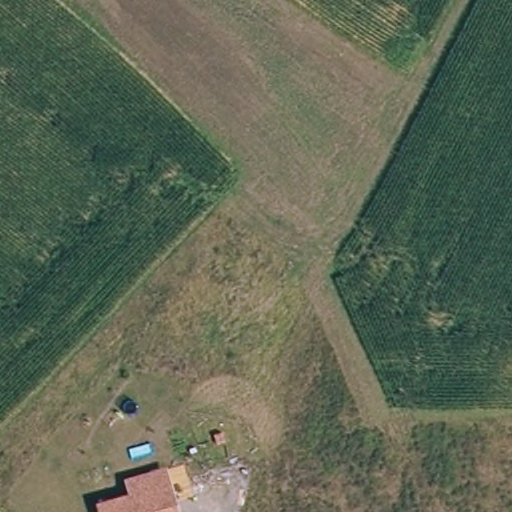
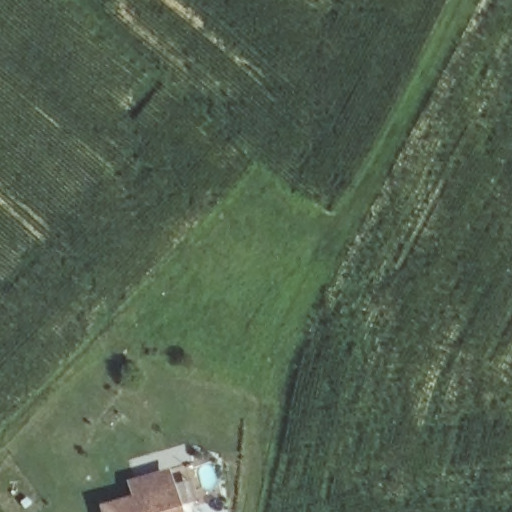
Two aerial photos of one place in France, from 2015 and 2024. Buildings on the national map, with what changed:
unchanged [(130,495),(126,481),(159,470),(163,484),(167,483),(176,512),(99,512),(97,506),(130,495)]

